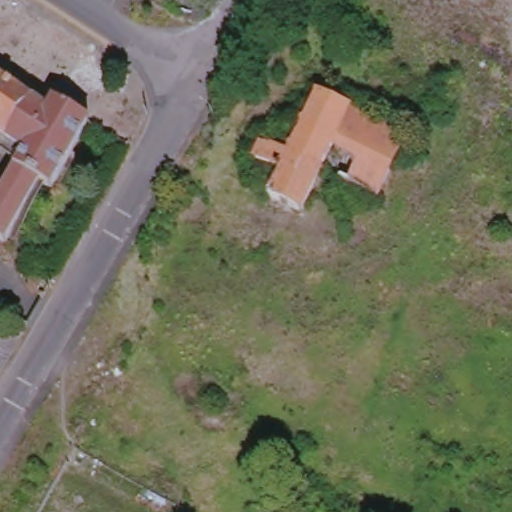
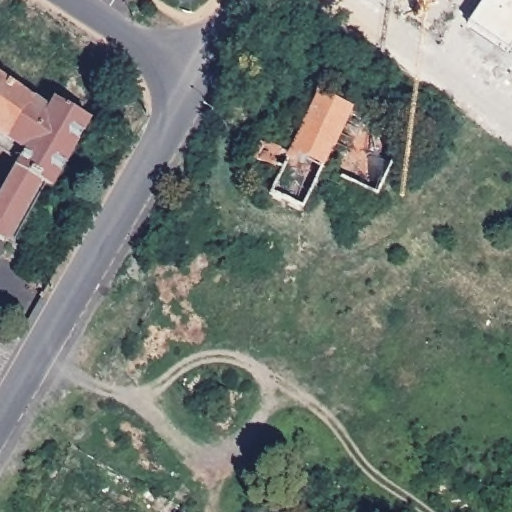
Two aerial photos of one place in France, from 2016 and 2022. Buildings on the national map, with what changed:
new [(508,53),(467,25),(482,0),(512,0),(512,47),(508,53)]
unchanged [(54,109),(61,99),(66,102),(98,121),(60,188),(52,184),(46,181),(14,240),(0,232),(0,208),(25,162),(32,150),(0,128),(0,71),(13,80),(54,109)]
unchanged [(263,144),(288,156),(317,95),(405,136),(377,195),(321,169),(301,210),(270,195),(281,171),(256,159),(263,144)]
unchanged [(0,128),(32,150),(25,162),(0,144),(0,128)]
unchanged [(0,329),(20,340),(0,375),(0,329)]

